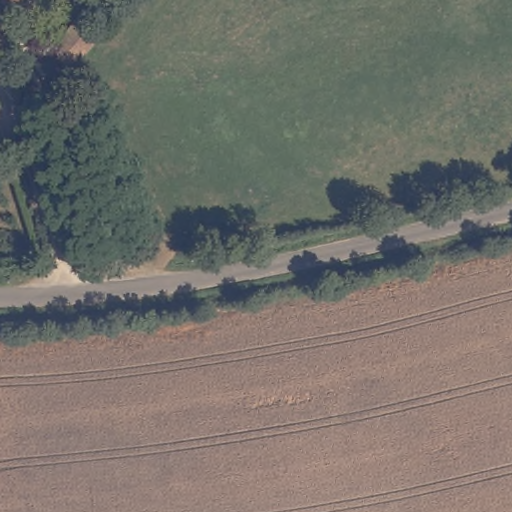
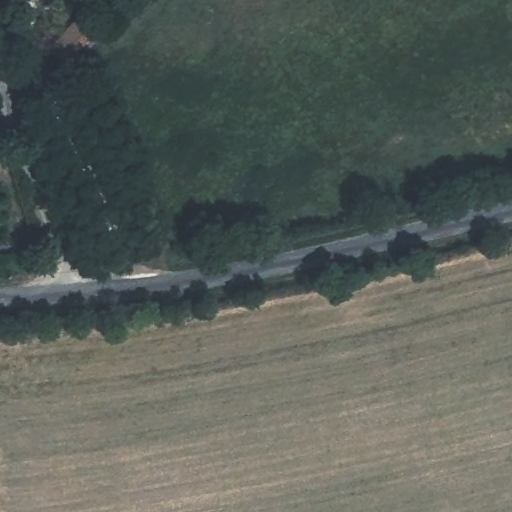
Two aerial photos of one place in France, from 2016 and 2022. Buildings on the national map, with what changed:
unchanged [(129,0),(128,1),(67,69),(46,51),(86,0),(129,0)]

